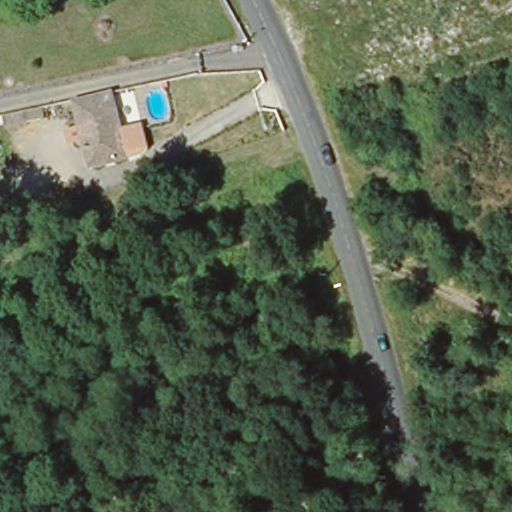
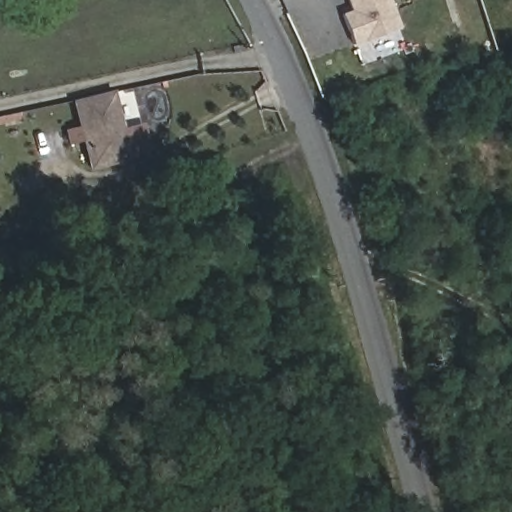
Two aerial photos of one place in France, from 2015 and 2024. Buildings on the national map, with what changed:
new [(353,48),(341,19),(351,14),(345,0),(386,0),(398,29),(353,48)]
unchanged [(80,121),(76,110),(116,99),(119,109),(126,134),(87,146),(80,121)]
demolished [(12,167),(0,171),(0,126),(4,125),(12,167)]
unchanged [(133,160),(94,171),(87,146),(126,134),(133,160)]

